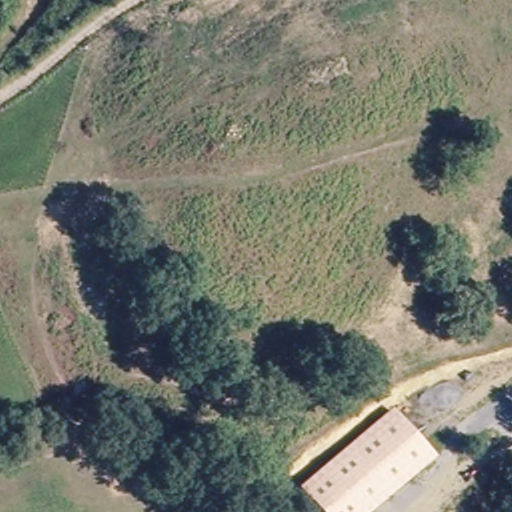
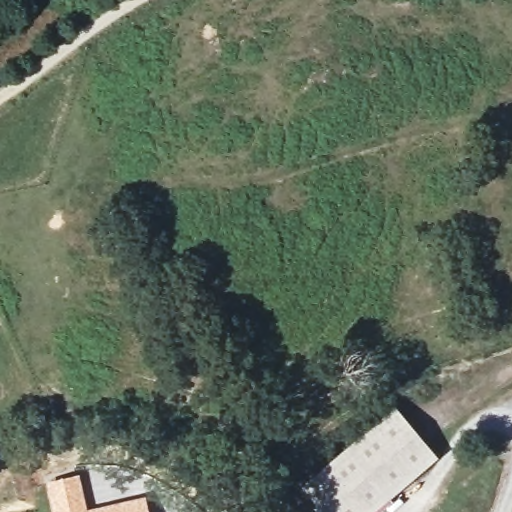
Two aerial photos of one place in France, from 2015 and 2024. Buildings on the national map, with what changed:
unchanged [(437,459),(375,512),(320,512),(300,489),(395,407),(437,459)]
new [(86,509),(145,497),(148,512),(52,512),(45,482),(78,475),(86,509)]

